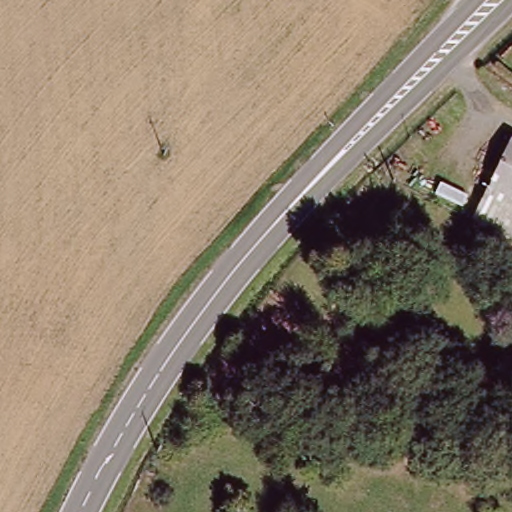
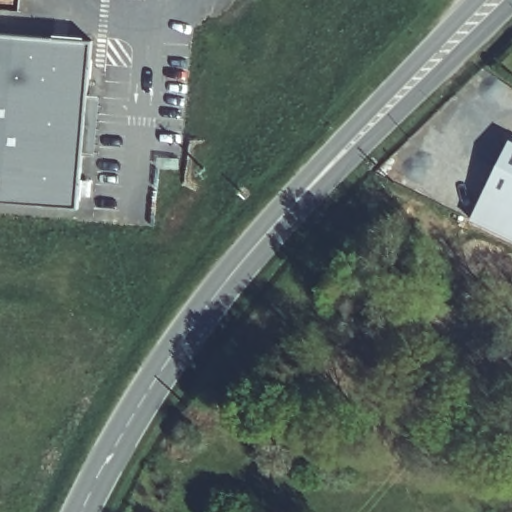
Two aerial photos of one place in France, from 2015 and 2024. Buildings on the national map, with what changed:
new [(77,206),(0,200),(0,33),(92,40),(77,206)]
unchanged [(512,148),(512,240),(475,221),(512,148)]

